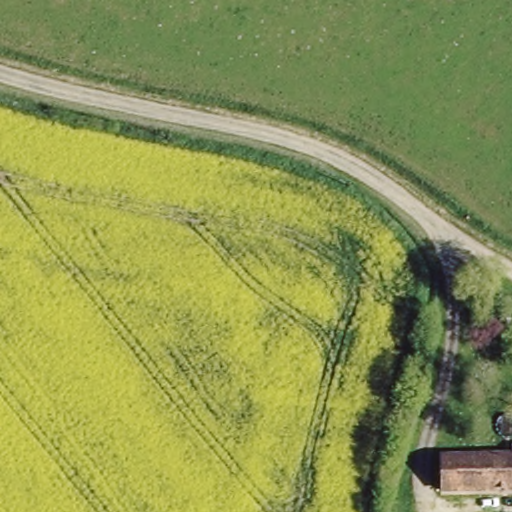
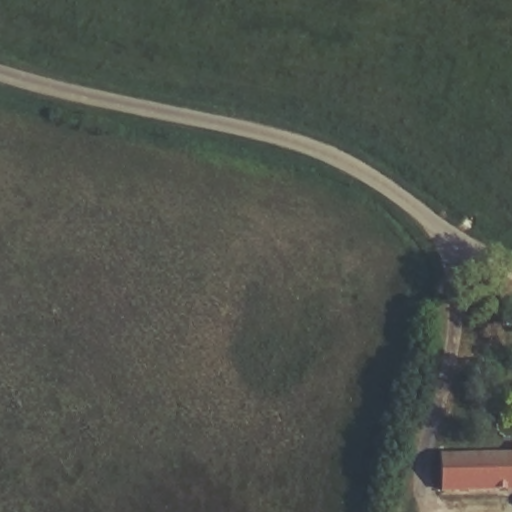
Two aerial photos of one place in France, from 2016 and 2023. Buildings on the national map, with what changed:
unchanged [(512,458),(512,493),(425,489),(434,451),(483,456),(512,458)]

